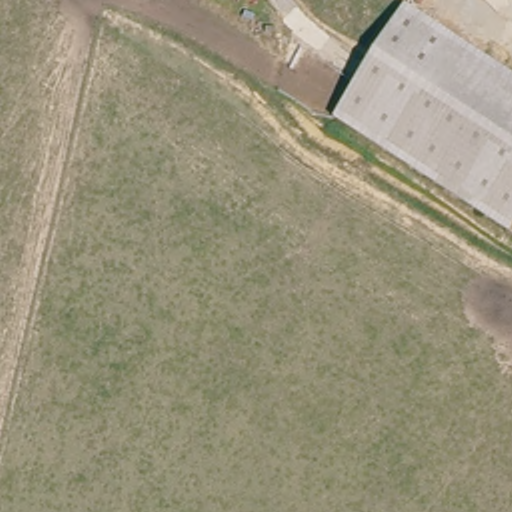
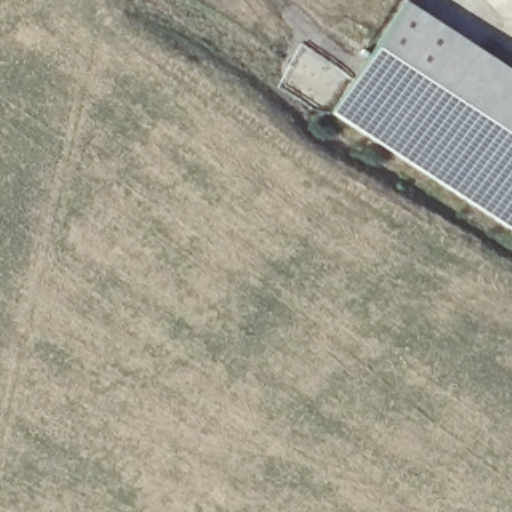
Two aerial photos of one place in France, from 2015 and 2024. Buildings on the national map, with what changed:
unchanged [(333,113),(406,3),(512,74),(512,225),(510,229),(333,113)]

